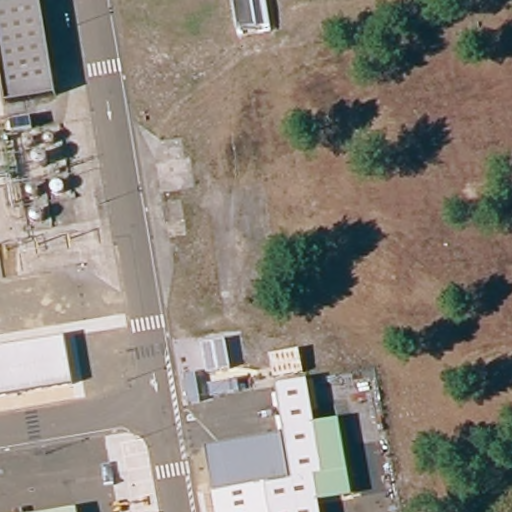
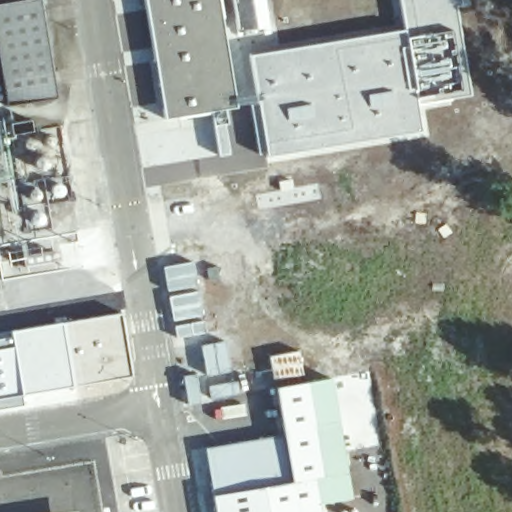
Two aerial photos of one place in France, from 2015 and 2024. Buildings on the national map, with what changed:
unchanged [(8,102),(0,53),(0,0),(44,0),(60,94),(8,102)]
new [(166,114),(148,0),(219,0),(235,103),(166,114)]
unchanged [(256,28),(240,31),(236,0),(267,0),(270,26),(256,28)]
new [(251,54),(404,29),(401,0),(461,0),(461,2),(454,4),(469,92),(416,102),(420,129),(266,154),(251,54)]
demolished [(6,113),(0,114),(0,92),(3,92),(6,113)]
unchanged [(35,126),(15,130),(13,119),(33,115),(35,126)]
demolished [(11,139),(0,141),(0,120),(7,118),(11,139)]
demolished [(15,165),(3,167),(0,146),(11,144),(15,165)]
new [(122,312),(131,373),(71,385),(65,339),(63,322),(122,312)]
unchanged [(72,387),(0,400),(0,349),(63,338),(72,387)]
unchanged [(346,471),(312,477),(318,512),(213,512),(210,495),(212,495),(287,482),(289,481),(273,387),(305,382),(313,426),(337,421),(346,471)]
unchanged [(287,482),(212,495),(208,473),(204,450),(212,449),(279,437),(287,482)]
unchanged [(81,512),(66,512),(80,509),(81,512)]

